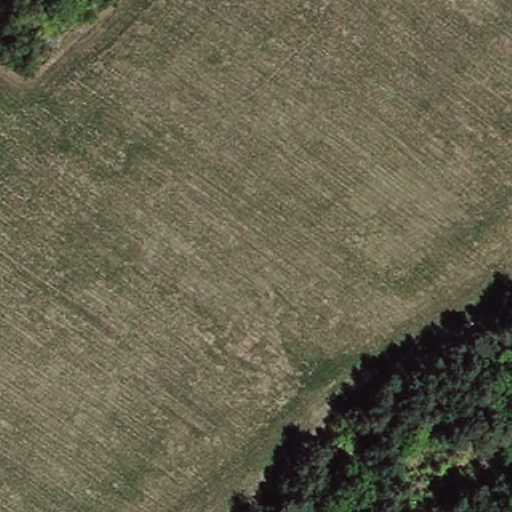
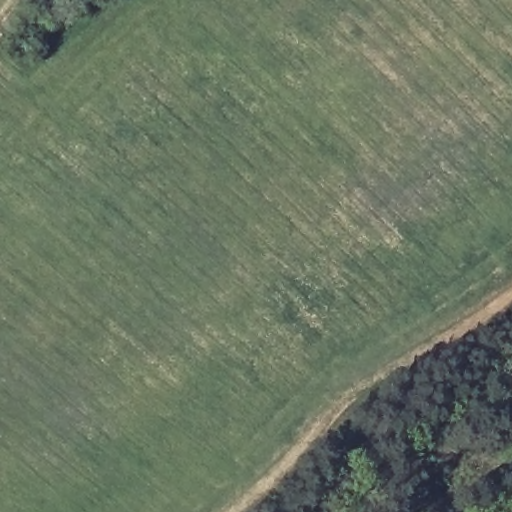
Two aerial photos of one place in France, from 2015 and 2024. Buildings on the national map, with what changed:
[]

